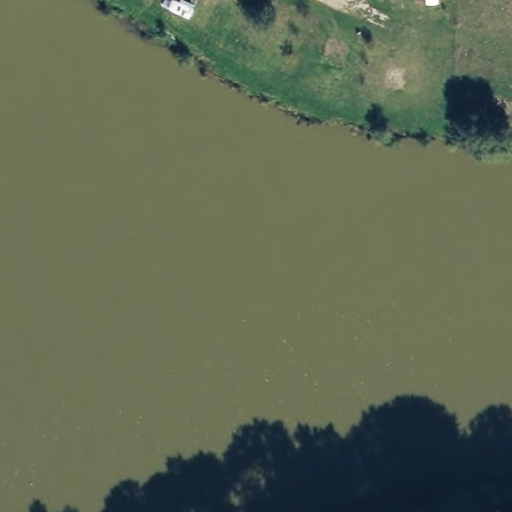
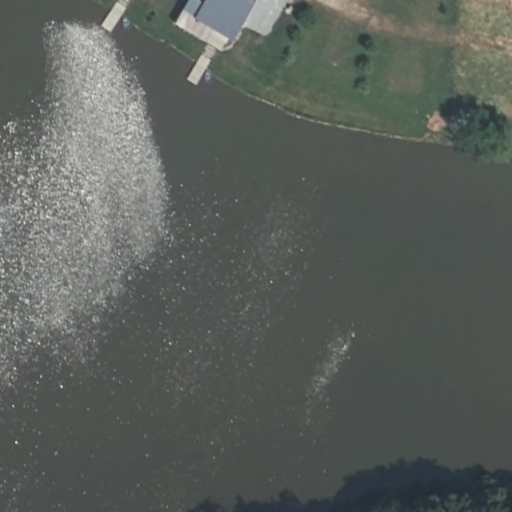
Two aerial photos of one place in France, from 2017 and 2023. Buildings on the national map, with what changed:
new [(204,0),(254,0),(232,37),(213,25),(205,38),(175,20),(187,0),(201,0),(203,2),(204,0)]

